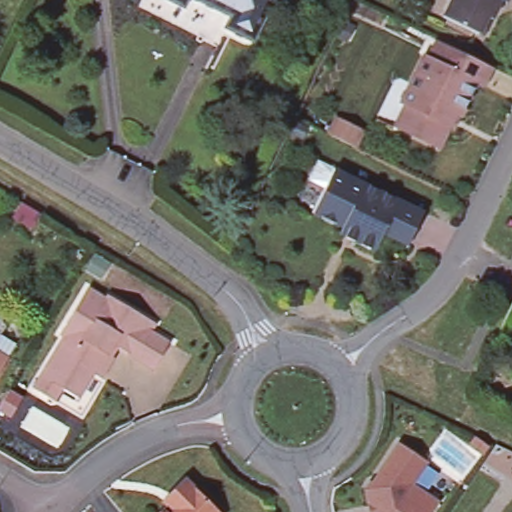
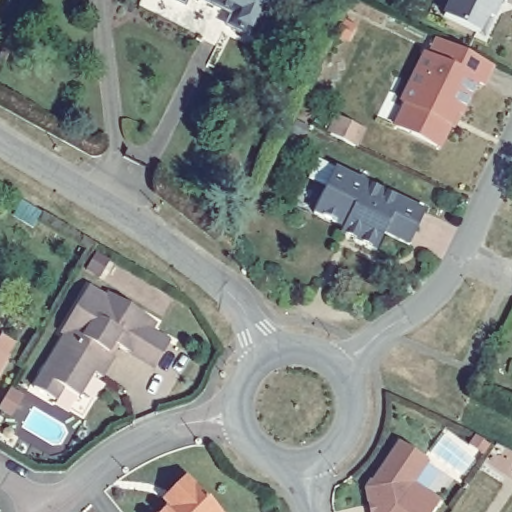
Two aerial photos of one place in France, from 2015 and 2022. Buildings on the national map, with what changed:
unchanged [(234,20),(238,11),(216,0),(275,0),(259,32),(234,20)]
unchanged [(497,25),(490,21),(483,35),(447,18),(455,0),(512,0),(512,8),(510,12),(505,9),(497,25)]
unchanged [(496,70),(487,88),(480,84),(463,119),(460,117),(442,151),(395,127),(405,106),(398,103),(422,55),(427,58),(435,40),(496,70)]
unchanged [(335,118),(361,131),(353,147),(327,135),(335,118)]
unchanged [(308,212),(327,171),(393,202),(378,235),(370,253),(349,243),(303,222),(308,212)]
unchanged [(418,213),(403,247),(378,235),(393,202),(418,213)]
unchanged [(109,298),(112,293),(159,322),(153,331),(172,343),(157,368),(115,343),(110,351),(116,355),(103,376),(95,371),(80,395),(64,386),(56,399),(35,386),(67,334),(63,331),(91,286),(109,298)]
unchanged [(398,346),(415,354),(407,370),(390,362),(398,346)]
unchanged [(0,383),(0,351),(15,360),(0,383)]
unchanged [(431,457),(416,478),(442,497),(432,512),(377,512),(379,511),(370,486),(404,438),(431,457)]
unchanged [(172,502),(180,495),(175,488),(189,474),(227,512),(163,512),(172,502)]

